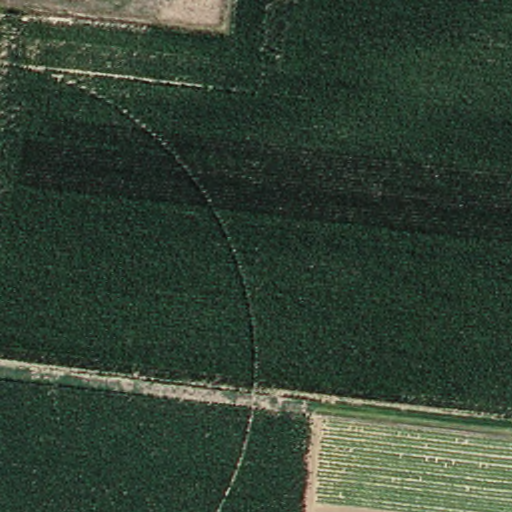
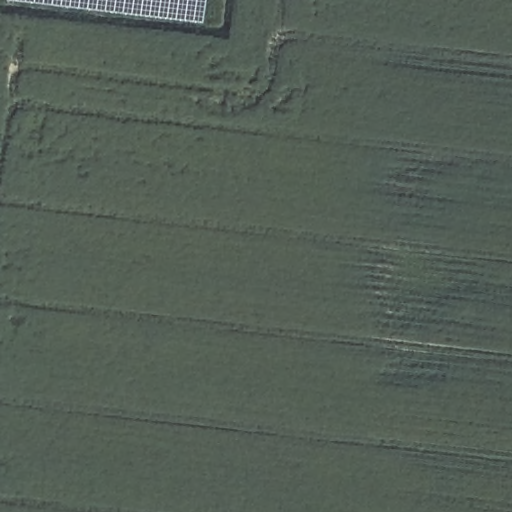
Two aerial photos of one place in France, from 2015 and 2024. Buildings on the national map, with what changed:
new [(200,24),(11,0),(203,0),(200,24)]

